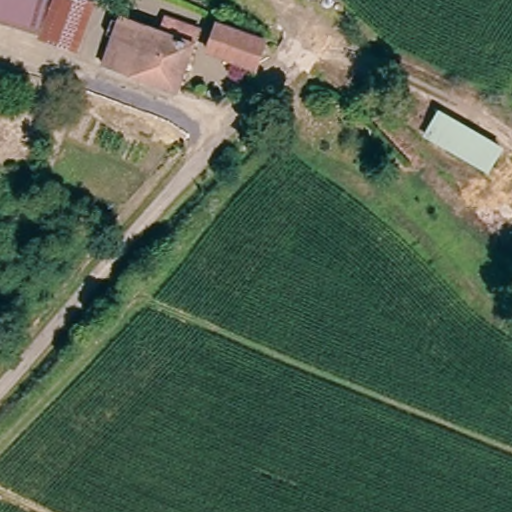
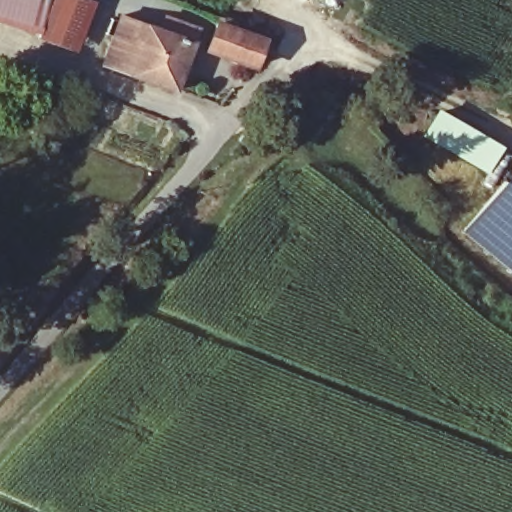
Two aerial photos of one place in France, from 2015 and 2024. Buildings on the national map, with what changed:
unchanged [(0,13),(0,0),(54,0),(46,26),(0,13)]
unchanged [(90,0),(92,1),(81,43),(44,34),(46,26),(54,0),(90,0)]
unchanged [(102,69),(115,21),(164,35),(169,18),(200,27),(195,44),(182,91),(114,72),(102,69)]
unchanged [(265,45),(250,62),(207,49),(215,25),(249,35),(267,41),(265,45)]
unchanged [(418,135),(438,107),(501,147),(487,174),(418,135)]
new [(512,172),(512,270),(463,230),(512,172)]

